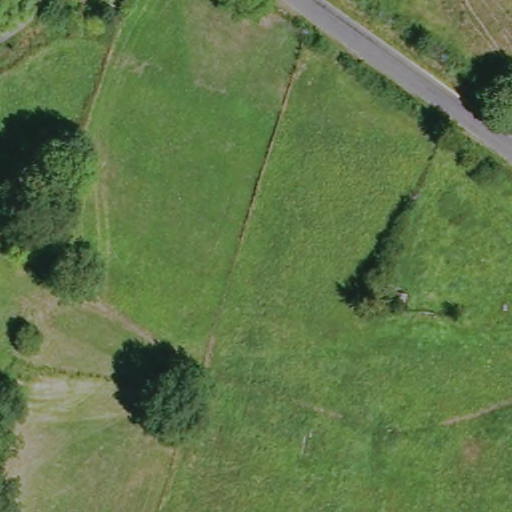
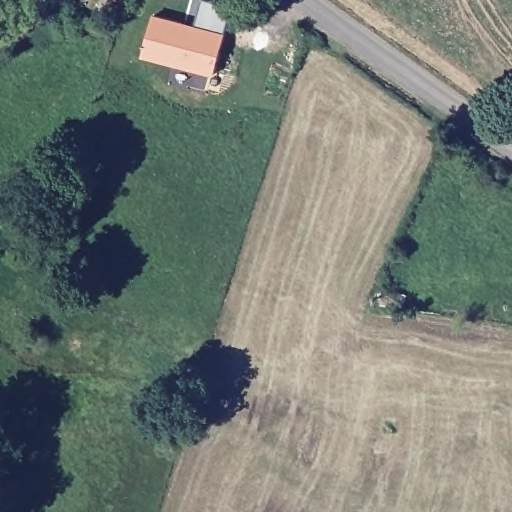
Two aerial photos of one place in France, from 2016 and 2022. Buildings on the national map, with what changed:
new [(197,26),(203,0),(231,8),(225,35),(215,76),(142,57),(154,15),(197,26)]

